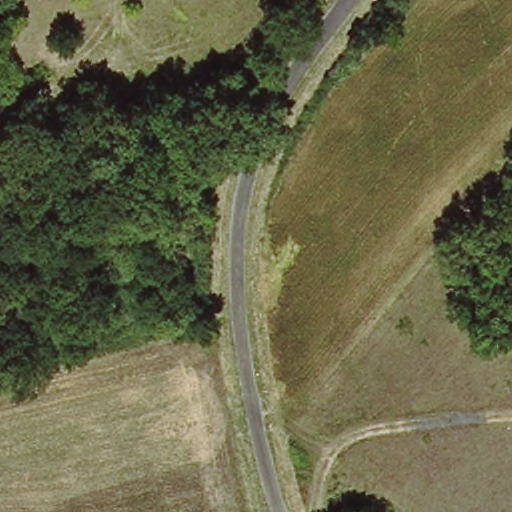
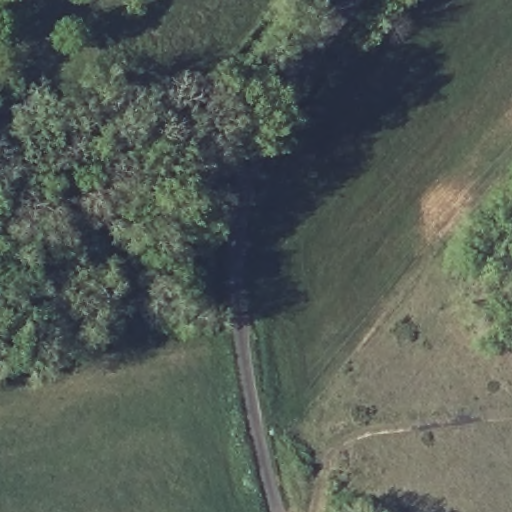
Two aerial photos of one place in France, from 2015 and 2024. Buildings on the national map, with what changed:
unchanged [(0,102),(29,89),(41,109),(0,129),(0,102)]

